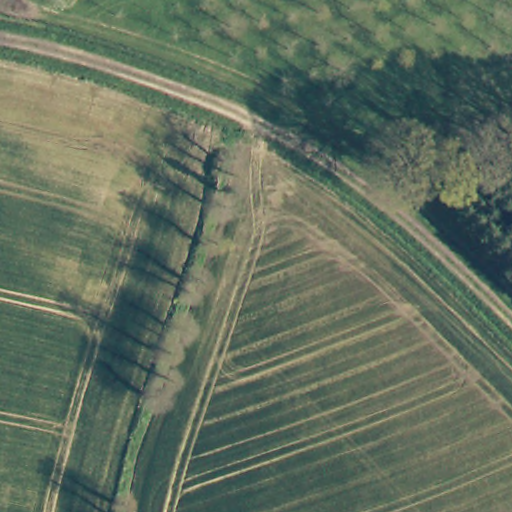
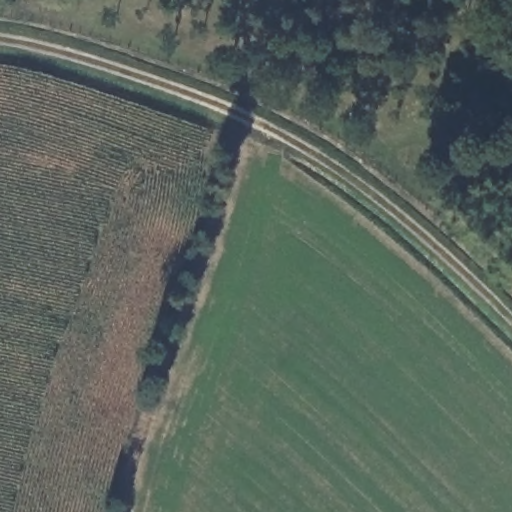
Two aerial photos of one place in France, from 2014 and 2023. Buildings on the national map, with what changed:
[]

